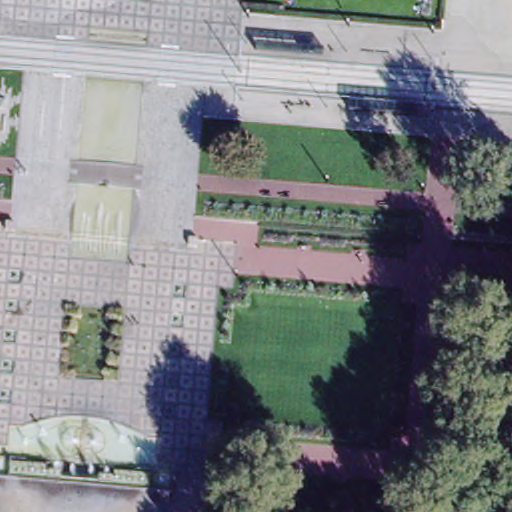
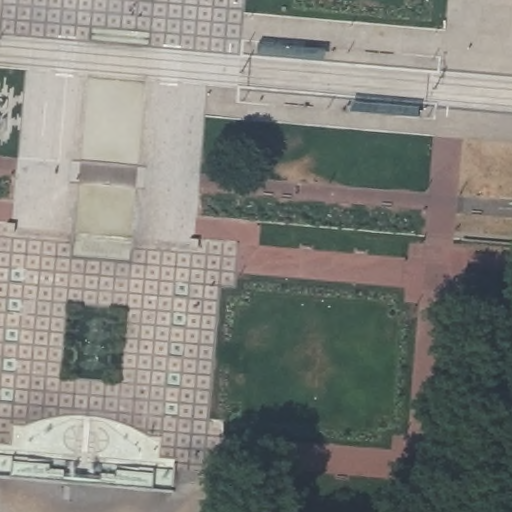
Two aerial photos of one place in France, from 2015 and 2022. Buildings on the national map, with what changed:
unchanged [(497,284),(497,295),(465,292),(465,282),(497,284)]

